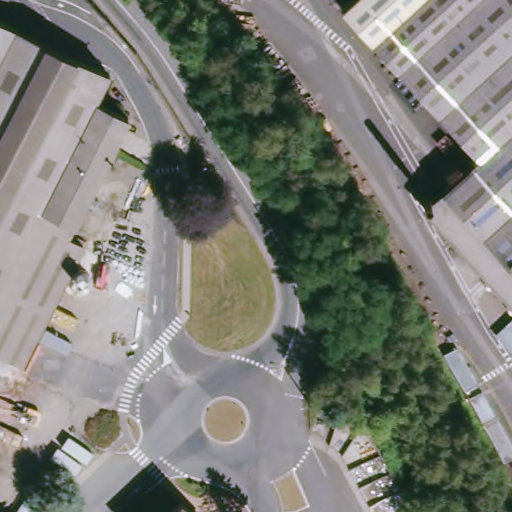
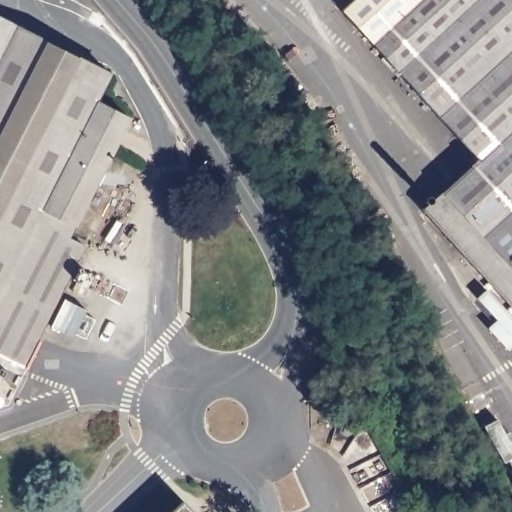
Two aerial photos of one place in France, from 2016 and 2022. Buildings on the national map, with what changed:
unchanged [(477,161),(341,11),(353,0),(512,0),(512,314),(422,213),(477,161)]
unchanged [(107,75),(93,103),(128,119),(68,240),(81,249),(0,410),(0,22),(107,75)]
unchanged [(90,276),(84,288),(73,282),(79,270),(90,276)]
unchanged [(181,501),(191,512),(169,512),(181,501)]

